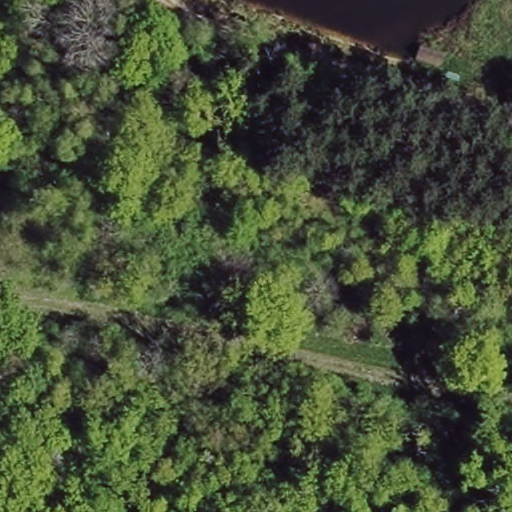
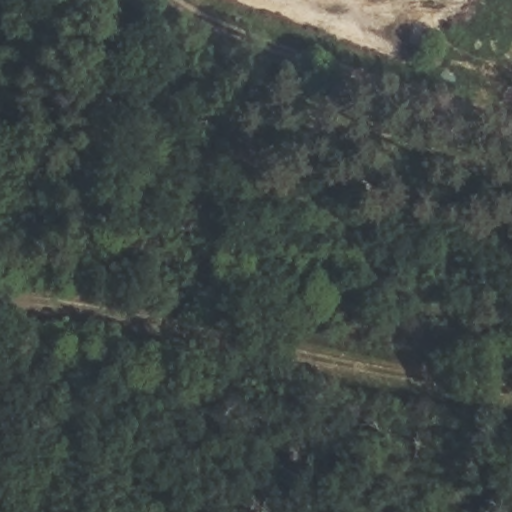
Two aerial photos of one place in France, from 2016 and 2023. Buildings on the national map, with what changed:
unchanged [(414,60),(418,43),(446,50),(442,69),(414,60)]

